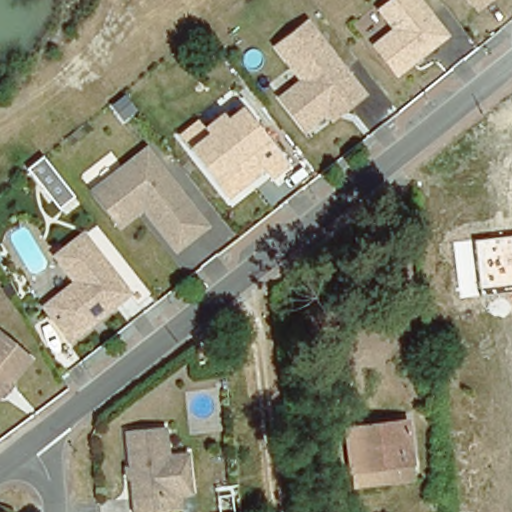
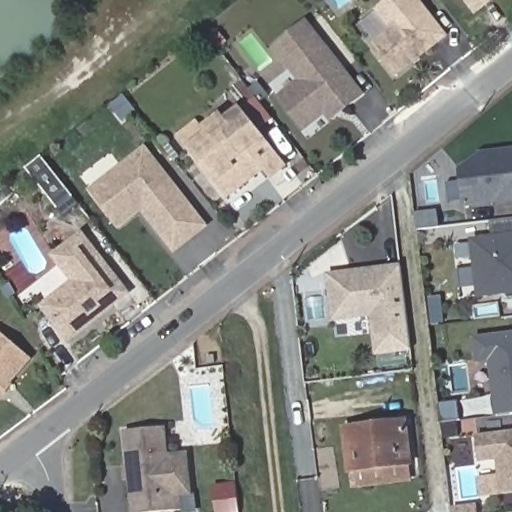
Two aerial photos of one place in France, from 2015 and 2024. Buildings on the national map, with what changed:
unchanged [(446,35),(396,73),(373,44),(394,27),(379,7),(389,0),(420,0),(446,35)]
unchanged [(477,12),(467,0),(493,0),(477,12)]
unchanged [(325,110),(303,127),(279,96),(302,78),(275,44),(306,20),(362,92),(348,104),(330,117),(325,110)]
unchanged [(230,199),(194,152),(184,140),(204,125),(209,131),(226,117),(231,122),(247,110),(290,167),(273,180),(266,171),(250,184),(230,199)]
unchanged [(200,224),(170,247),(137,204),(133,207),(131,215),(117,226),(90,191),(145,150),(200,224)]
new [(463,206),(458,170),(477,154),(512,150),(512,200),(463,206)]
unchanged [(58,210),(25,168),(43,154),(77,197),(58,210)]
unchanged [(66,340),(41,307),(73,282),(53,256),(80,235),(125,294),(66,340)]
unchanged [(480,297),(472,240),(512,235),(512,293),(480,297)]
new [(404,268),(413,351),(379,355),(375,315),(355,317),(353,302),(334,306),(331,277),(404,268)]
unchanged [(0,388),(0,331),(27,354),(10,376),(12,378),(1,390),(0,388)]
new [(492,396),(488,359),(475,361),(473,338),(512,333),(512,414),(508,414),(495,416),(492,396)]
unchanged [(131,510),(130,494),(123,426),(161,422),(165,447),(185,446),(189,487),(155,491),(156,507),(131,510)]
unchanged [(411,475),(350,481),(345,437),(407,430),(411,475)]
new [(479,463),(476,439),(512,435),(512,494),(501,496),(497,462),(492,462),(479,463)]
new [(239,512),(218,512),(215,487),(236,485),(239,512)]

